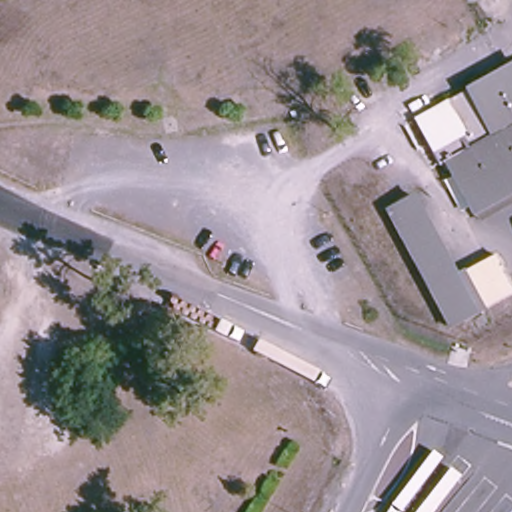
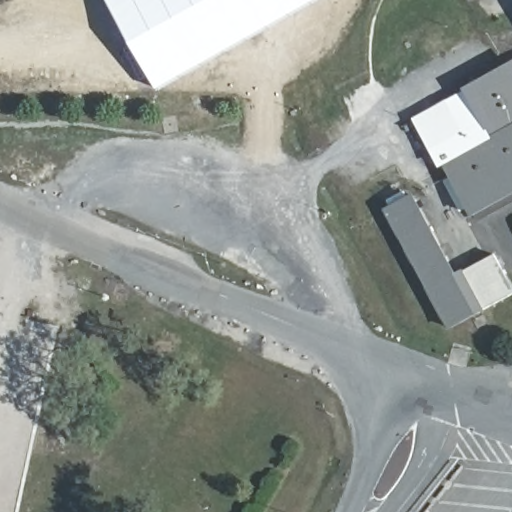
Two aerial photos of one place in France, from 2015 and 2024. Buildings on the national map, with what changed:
new [(159,90),(107,0),(317,0),(159,90)]
unchanged [(446,162),(438,166),(414,120),(512,67),(512,187),(471,210),(446,162)]
unchanged [(512,187),(512,205),(477,224),(471,210),(512,187)]
unchanged [(417,196),(457,273),(495,254),(512,283),(512,294),(448,330),(385,212),(417,196)]

